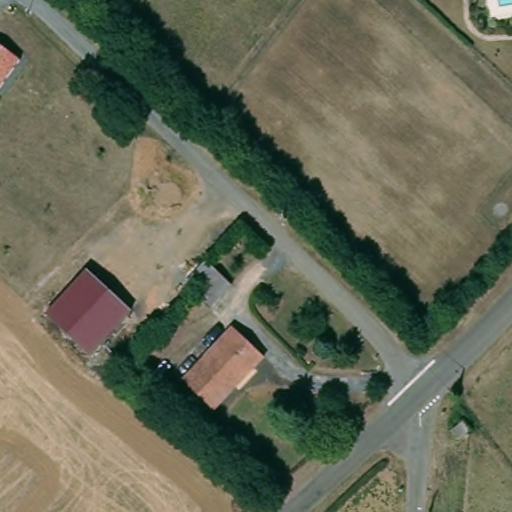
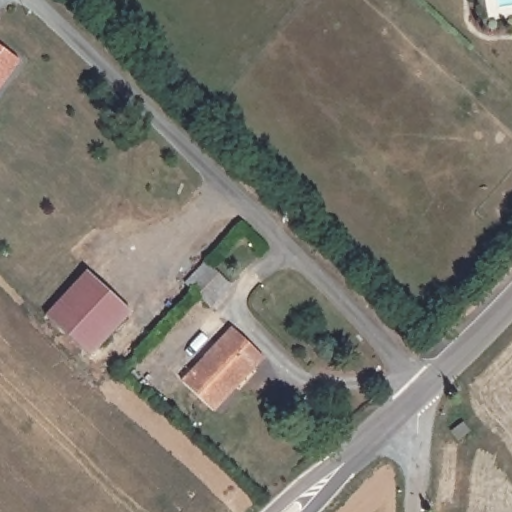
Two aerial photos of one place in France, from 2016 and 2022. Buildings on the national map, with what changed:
unchanged [(0,89),(0,43),(21,58),(0,89)]
unchanged [(204,261),(230,285),(211,305),(185,280),(204,261)]
unchanged [(69,289),(90,266),(135,306),(113,331),(95,351),(50,311),(69,289)]
unchanged [(232,327),(264,357),(245,379),(217,409),(214,411),(183,382),(185,379),(232,327)]
unchanged [(451,425),(460,418),(464,413),(473,426),(467,430),(457,437),(451,425)]

